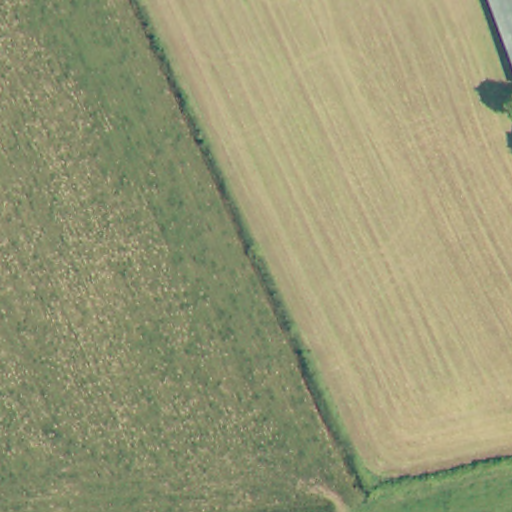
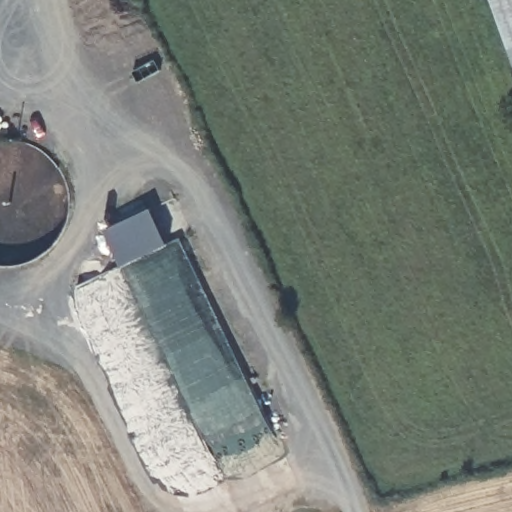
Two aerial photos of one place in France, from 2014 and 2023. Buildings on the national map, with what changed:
unchanged [(490,0),(512,0),(512,63),(490,0)]
new [(149,206),(165,241),(120,262),(104,227),(149,206)]

